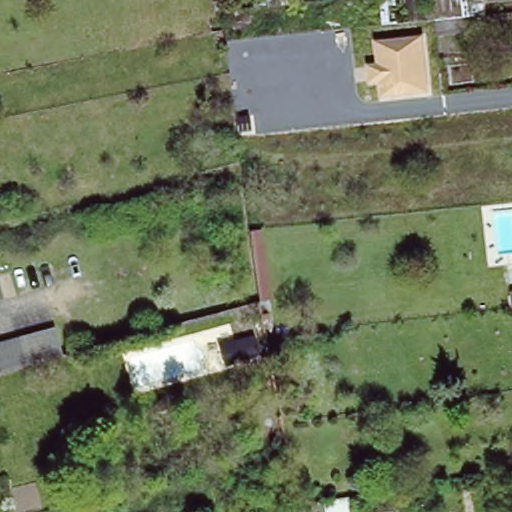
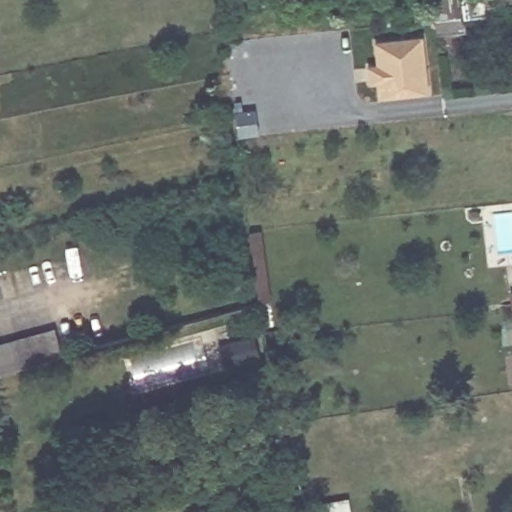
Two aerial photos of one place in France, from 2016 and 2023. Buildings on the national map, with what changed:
unchanged [(492,9),(492,20),(414,22),(415,0),(512,0),(512,7),(492,9)]
unchanged [(378,82),(369,83),(366,65),(376,64),(373,41),(424,35),(430,91),(380,98),(378,82)]
unchanged [(0,373),(0,344),(63,327),(70,355),(0,373)]

